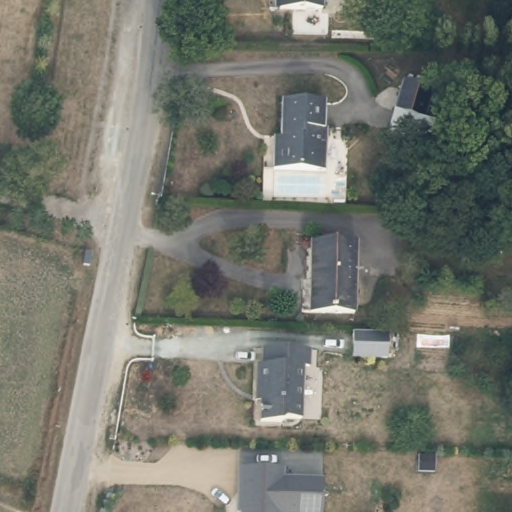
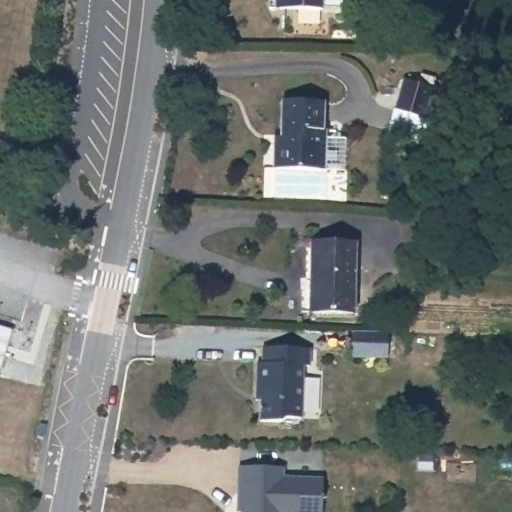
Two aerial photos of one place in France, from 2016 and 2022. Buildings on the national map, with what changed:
unchanged [(275,0),(327,0),(327,10),(282,7),(275,7),(275,0)]
unchanged [(393,110),(402,80),(432,89),(425,120),(393,110)]
unchanged [(273,170),(273,139),(281,139),(281,104),(322,104),(322,132),(324,132),(323,171),(273,170)]
unchanged [(308,311),(308,239),(351,240),(351,311),(308,311)]
new [(0,366),(0,325),(12,328),(0,366)]
unchanged [(348,360),(350,335),(385,336),(384,362),(348,360)]
unchanged [(251,383),(252,358),(260,359),(260,340),(309,343),(308,362),(303,362),(300,415),(282,415),(280,419),(257,418),(258,398),(250,397),(251,383)]
unchanged [(238,512),(239,505),(236,505),(236,486),(237,486),(237,460),(282,460),(282,471),(321,471),(320,511),(279,510),(279,512),(238,512)]

